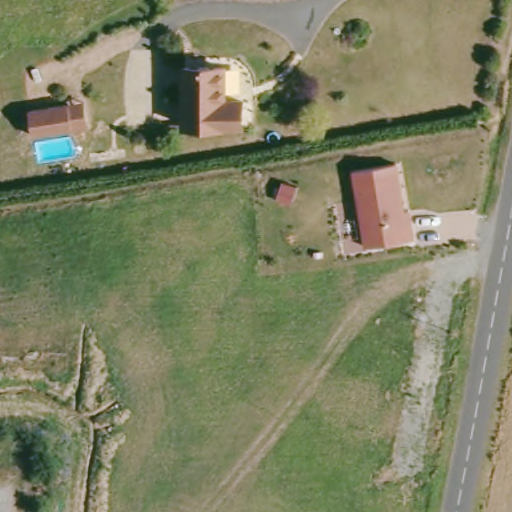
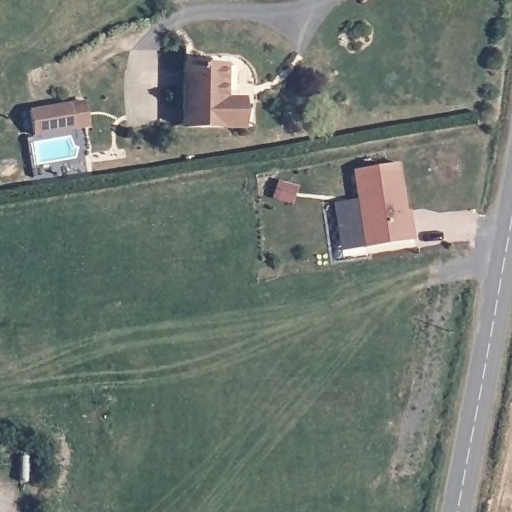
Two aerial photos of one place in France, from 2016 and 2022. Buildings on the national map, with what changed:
unchanged [(226,65),(227,89),(220,90),(220,100),(244,98),(245,125),(188,128),(186,128),(185,67),(226,65)]
unchanged [(28,111),(67,104),(82,101),(87,126),(72,129),(32,135),(28,111)]
unchanged [(410,220),(413,240),(365,249),(352,172),(395,165),(403,212),(408,211),(410,220)]

